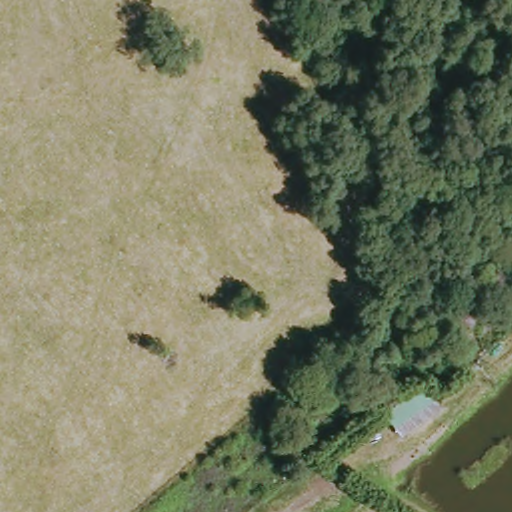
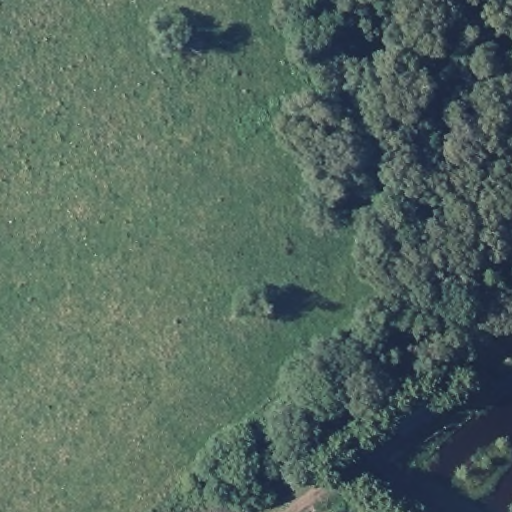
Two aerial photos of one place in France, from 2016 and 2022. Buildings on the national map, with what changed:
unchanged [(386,418),(428,388),(444,413),(402,441),(386,418)]

